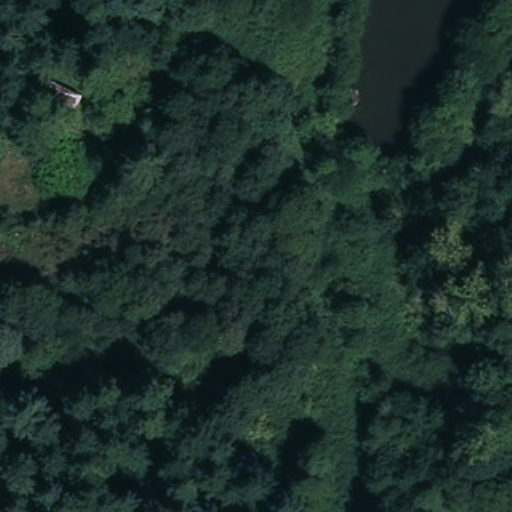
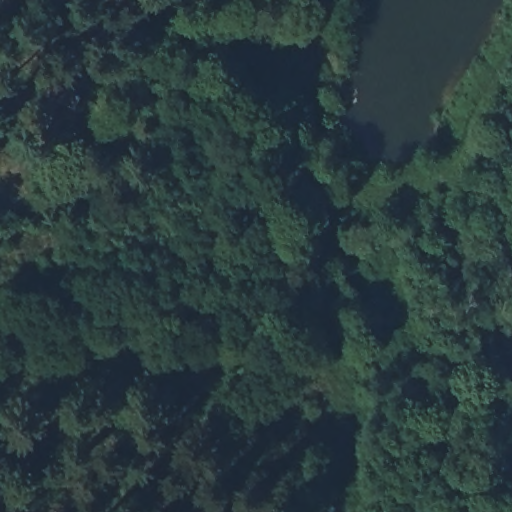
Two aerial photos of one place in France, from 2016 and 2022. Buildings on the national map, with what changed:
unchanged [(45,99),(53,79),(88,96),(79,111),(45,99)]

